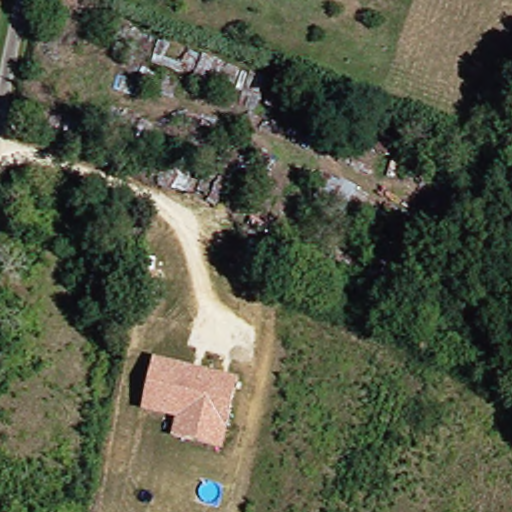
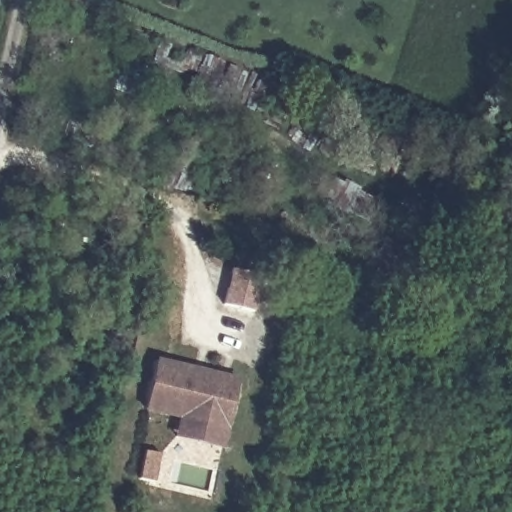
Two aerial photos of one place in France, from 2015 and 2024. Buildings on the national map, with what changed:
unchanged [(28,102),(44,105),(40,123),(24,120),(28,102)]
unchanged [(358,222),(306,194),(318,173),(370,203),(358,222)]
unchanged [(101,193),(122,201),(120,206),(129,209),(127,214),(97,203),(101,193)]
new [(231,270),(260,276),(251,312),(222,306),(231,270)]
unchanged [(224,450),(174,438),(178,420),(145,412),(156,358),(240,378),(224,450)]

